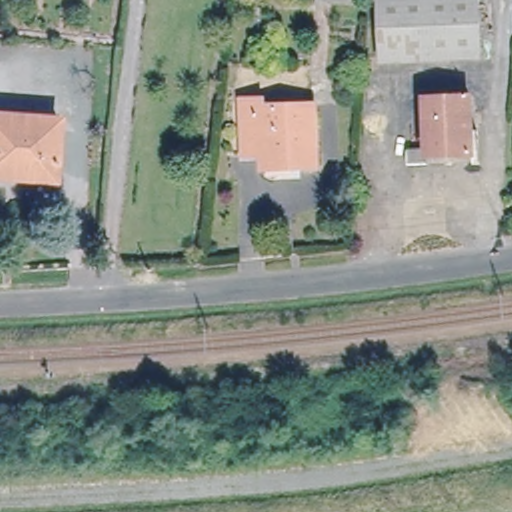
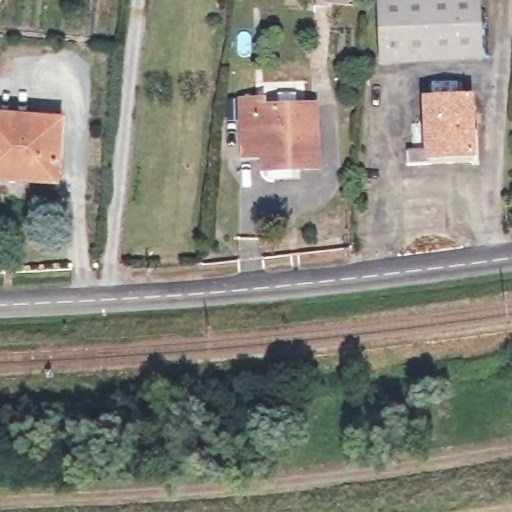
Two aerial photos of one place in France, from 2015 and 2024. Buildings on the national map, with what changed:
unchanged [(481,58),(380,62),(378,0),(479,0),(481,58)]
unchanged [(407,164),(407,151),(427,150),(425,98),(470,97),(472,162),(407,164)]
unchanged [(266,160),(266,155),(247,155),(246,99),(266,99),(266,106),(315,105),(316,167),(293,167),(266,168),(266,160)]
unchanged [(0,116),(60,120),(56,182),(27,179),(0,178),(0,116)]

